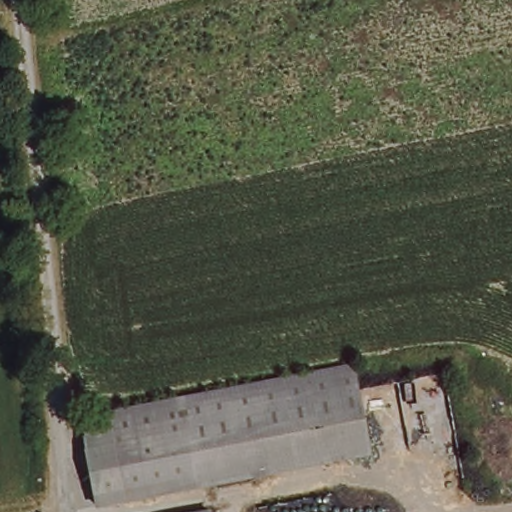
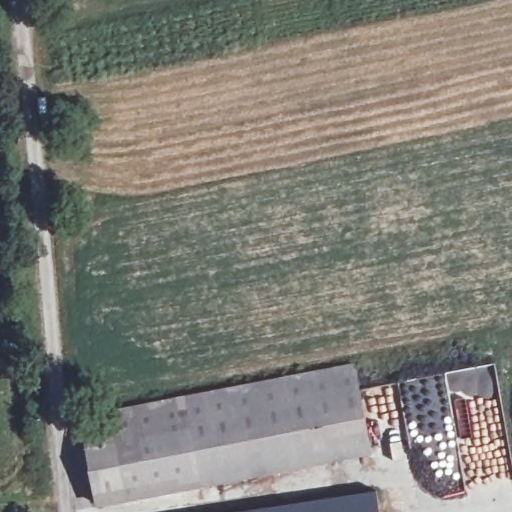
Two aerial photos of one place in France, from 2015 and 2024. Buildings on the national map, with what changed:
unchanged [(353,368),(368,462),(91,509),(73,416),(353,368)]
new [(379,512),(241,512),(376,489),(379,512)]

